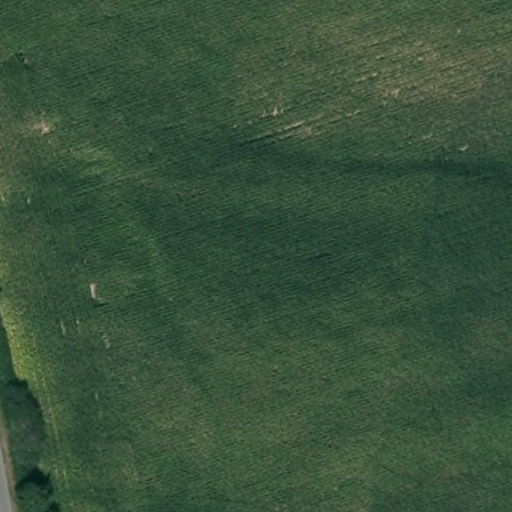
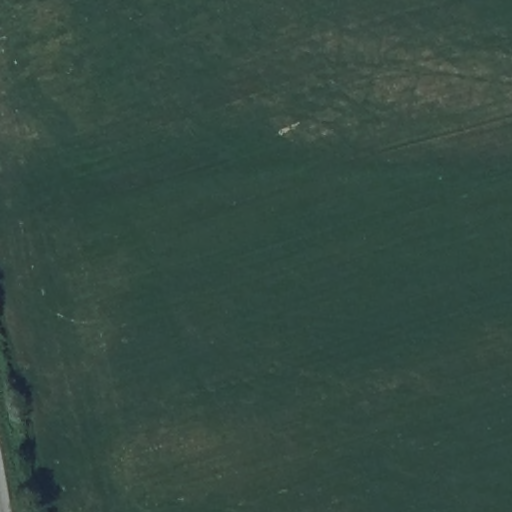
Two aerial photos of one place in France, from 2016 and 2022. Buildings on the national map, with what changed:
[]

